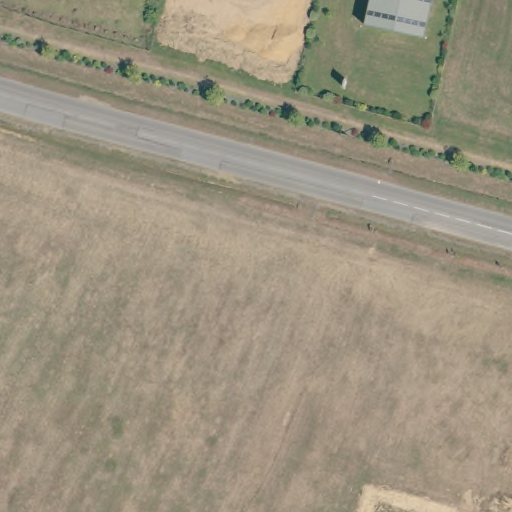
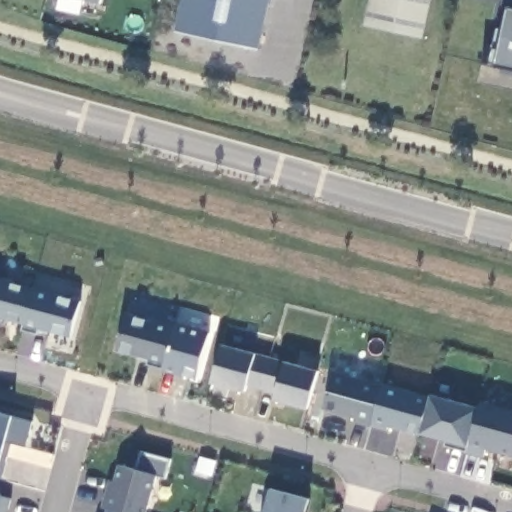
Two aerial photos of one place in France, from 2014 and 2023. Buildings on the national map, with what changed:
unchanged [(361,21),(366,0),(427,0),(420,34),(361,21)]
new [(512,70),(497,67),(509,9),(512,9),(512,70)]
new [(24,323),(0,316),(0,277),(7,278),(6,282),(33,288),(24,323)]
new [(33,288),(82,301),(72,337),(39,327),(37,333),(23,330),(24,323),(33,288)]
new [(163,368),(149,364),(151,359),(117,351),(125,314),(154,322),(156,318),(175,324),(163,368)]
new [(175,324),(209,334),(197,377),(163,368),(175,324)]
new [(222,344),(318,371),(308,409),(213,382),(222,344)]
new [(484,457),(466,453),(466,451),(446,445),(448,442),(420,433),(375,423),(324,410),(334,372),(383,385),(431,395),(480,408),(481,401),(512,409),(512,457),(486,449),(484,457)]
new [(26,447),(13,443),(3,480),(0,479),(0,413),(12,417),(32,423),(26,447)]
new [(108,511),(101,508),(109,479),(115,481),(119,466),(158,476),(147,512),(108,512),(108,511)]
new [(305,512),(265,512),(271,489),(309,499),(305,512)]
new [(7,512),(2,512),(0,511),(0,496),(2,497),(12,498),(7,512)]

